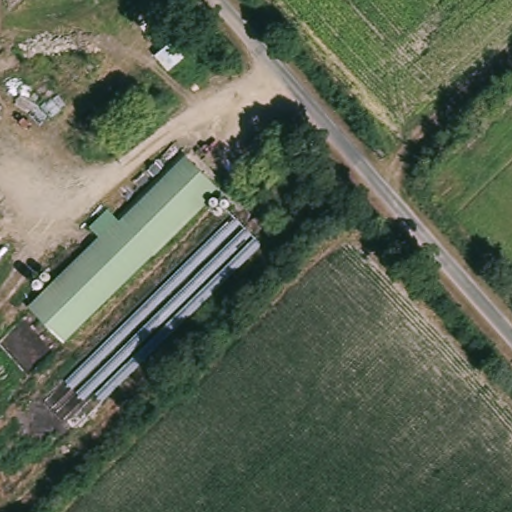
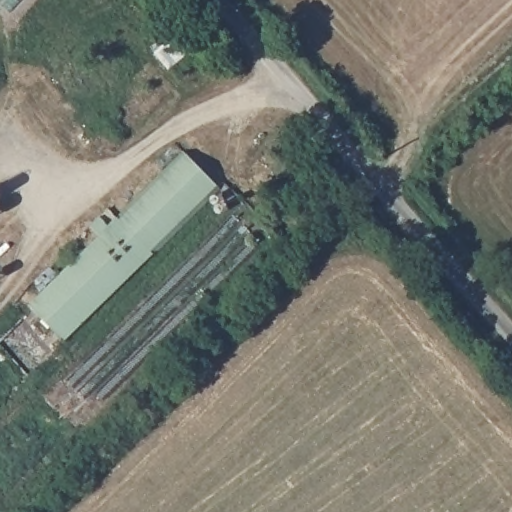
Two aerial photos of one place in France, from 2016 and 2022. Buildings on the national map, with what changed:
unchanged [(221,199),(60,342),(25,308),(186,163),(221,199)]

